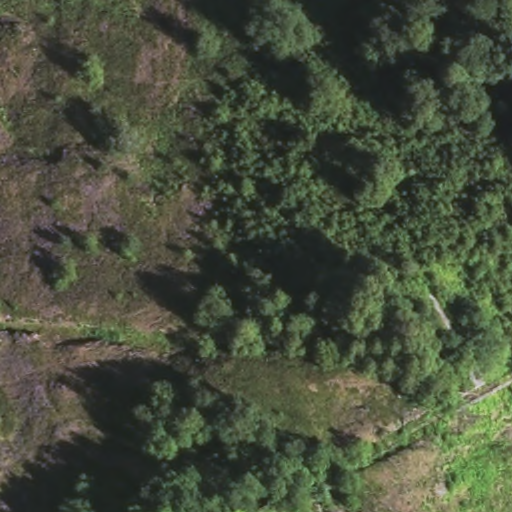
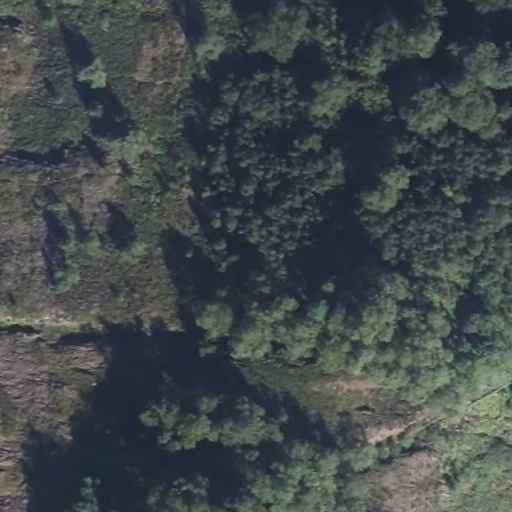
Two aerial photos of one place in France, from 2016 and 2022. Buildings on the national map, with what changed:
unchanged [(413,306),(438,295),(486,389),(457,396),(413,306)]

